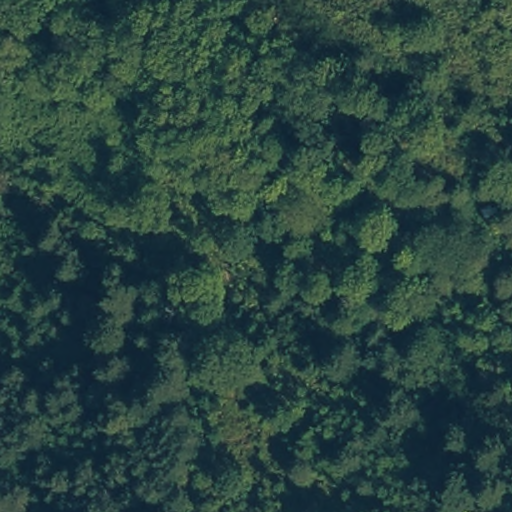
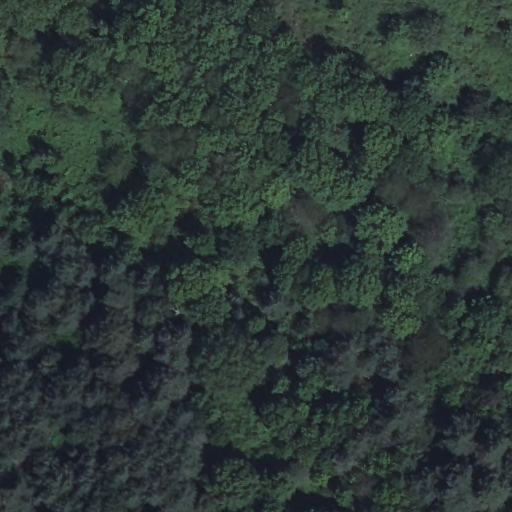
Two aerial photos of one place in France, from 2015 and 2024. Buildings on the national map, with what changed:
[]

